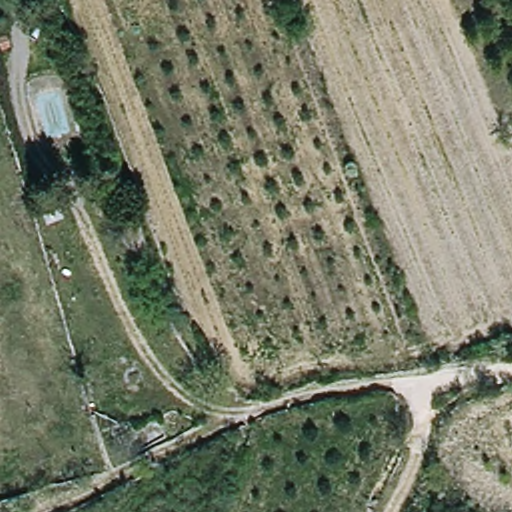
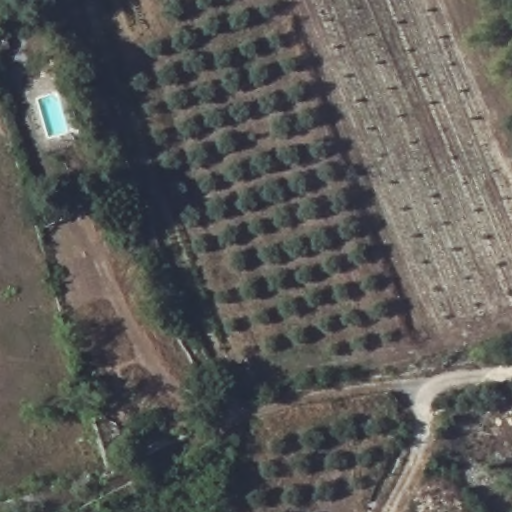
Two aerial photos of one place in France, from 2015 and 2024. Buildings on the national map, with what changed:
unchanged [(0,19),(0,10),(2,18),(0,19)]

